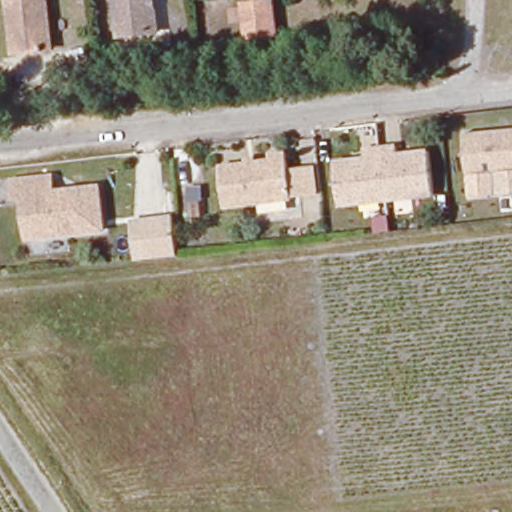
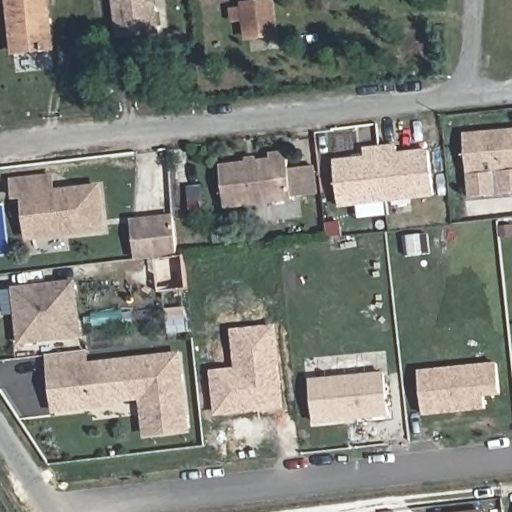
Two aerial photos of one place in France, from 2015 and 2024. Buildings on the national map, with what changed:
unchanged [(51,47),(11,52),(6,0),(46,0),(51,47)]
unchanged [(152,30),(116,35),(113,0),(149,0),(152,30)]
unchanged [(271,39),(243,43),(240,7),(268,3),(271,39)]
unchanged [(512,196),(492,197),(492,176),(463,178),(462,136),(512,132),(512,196)]
unchanged [(336,162),(365,158),(365,149),(397,145),(397,152),(427,150),(433,197),(341,208),(336,162)]
unchanged [(317,196),(302,197),(292,197),(292,199),(224,206),(219,166),(271,162),(271,154),(287,154),(288,169),(300,168),(315,167),(317,196)]
unchanged [(52,173),(54,190),(94,189),(96,229),(40,236),(22,220),(20,192),(10,192),(8,177),(52,173)]
unchanged [(180,257),(137,260),(133,219),(174,215),(180,257)]
new [(19,345),(12,288),(77,280),(83,338),(19,345)]
new [(216,416),(210,372),(236,368),(232,330),(276,326),(285,409),(216,416)]
new [(144,438),(140,400),(115,402),(115,406),(53,412),(46,356),(87,351),(88,361),(181,351),(192,433),(144,438)]
new [(497,363),(500,392),(484,394),(486,408),(423,414),(419,371),(497,363)]
new [(384,373),(388,415),(315,423),(311,380),(384,373)]
new [(484,512),(474,512),(484,511),(484,512)]

